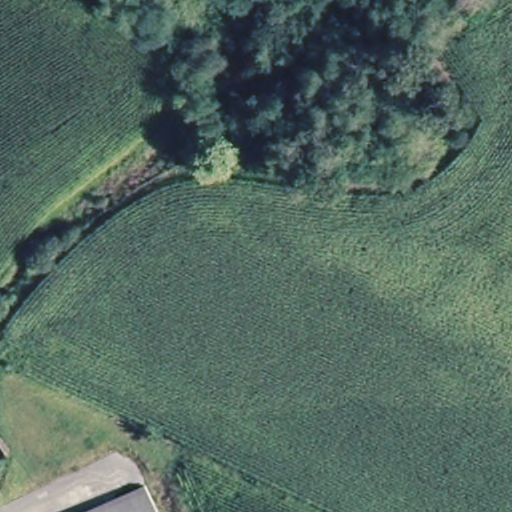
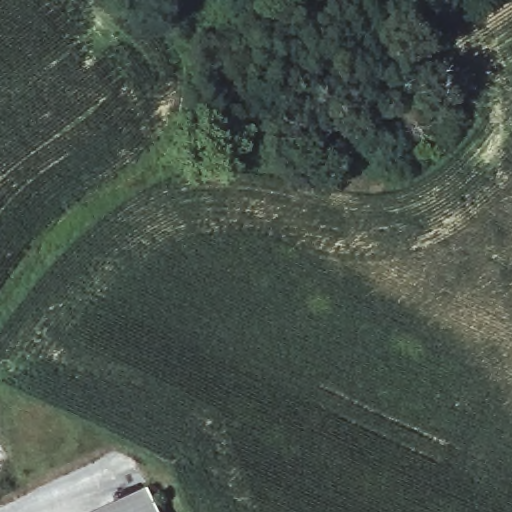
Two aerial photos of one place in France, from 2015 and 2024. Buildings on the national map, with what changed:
unchanged [(147,487),(159,512),(93,512),(147,487)]

